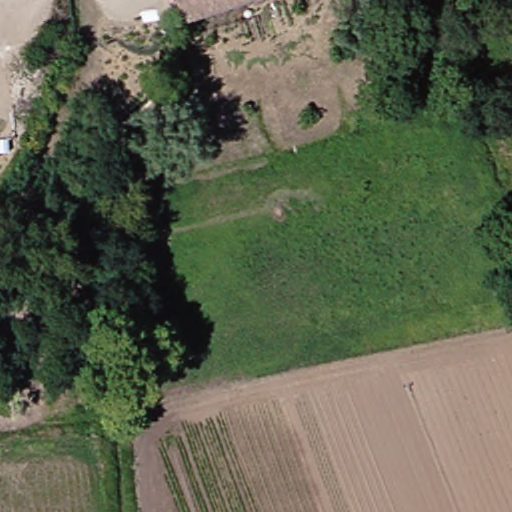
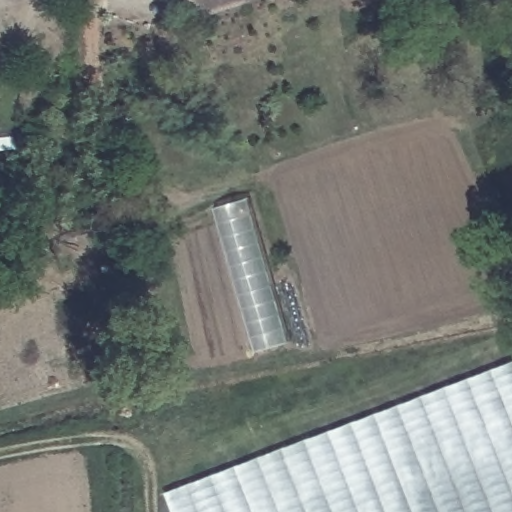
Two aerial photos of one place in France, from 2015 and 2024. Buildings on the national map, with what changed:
unchanged [(187,3),(186,0),(195,0),(187,3)]
unchanged [(195,0),(262,0),(195,23),(187,3),(195,0)]
new [(253,352),(214,208),(247,199),(286,343),(253,352)]
new [(512,512),(168,512),(161,495),(512,363),(512,512)]

